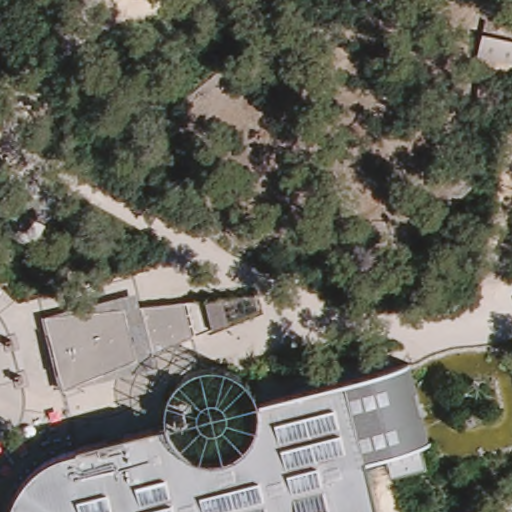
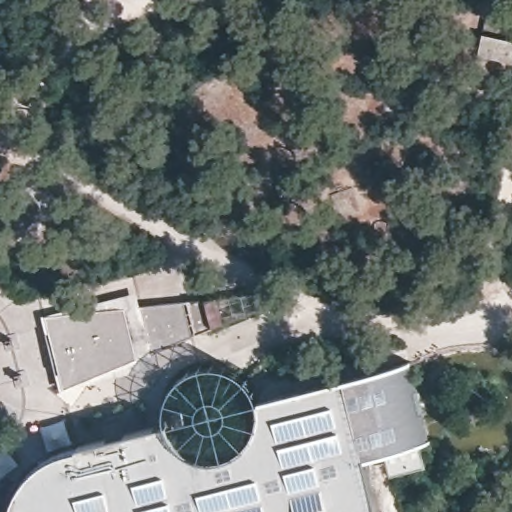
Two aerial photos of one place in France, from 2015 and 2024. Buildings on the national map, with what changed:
unchanged [(512,43),(512,67),(474,58),(479,36),(512,43)]
unchanged [(135,292),(139,306),(205,298),(209,332),(187,338),(169,345),(148,363),(63,392),(42,316),(135,292)]
unchanged [(426,444),(408,447),(366,460),(374,498),(375,512),(7,512),(8,503),(15,484),(30,466),(51,454),(159,424),(158,411),(159,405),(165,392),(169,384),(177,375),(191,368),(204,366),(221,369),(234,375),(243,382),(258,398),(380,368),(406,358),(426,444)]

